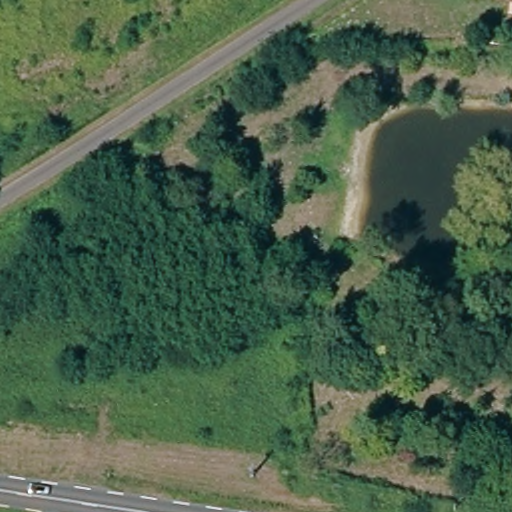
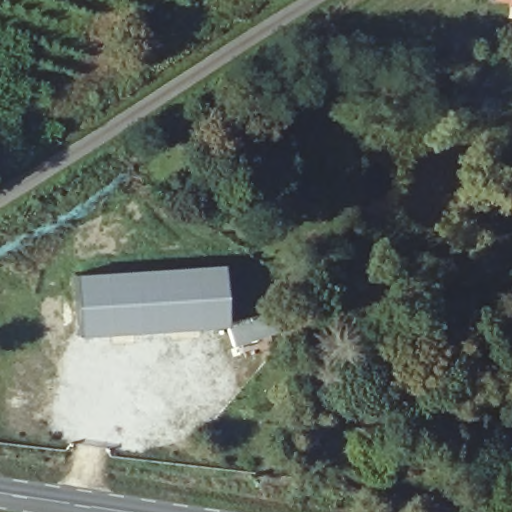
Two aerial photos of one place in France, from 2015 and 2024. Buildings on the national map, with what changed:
unchanged [(507,5),(508,0),(512,0),(512,5),(507,5)]
demolished [(74,252),(77,263),(57,267),(55,256),(74,252)]
new [(78,333),(75,273),(222,262),(227,325),(78,333)]

